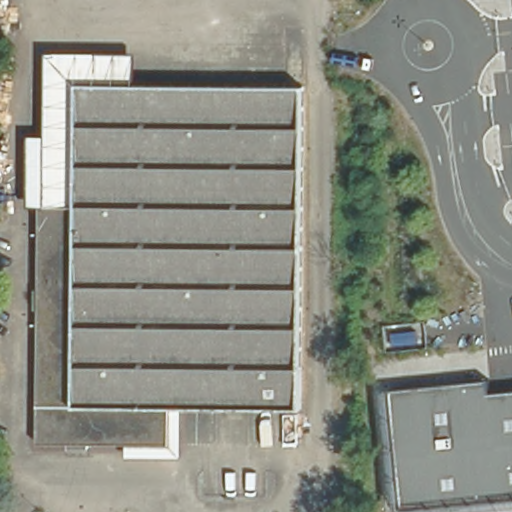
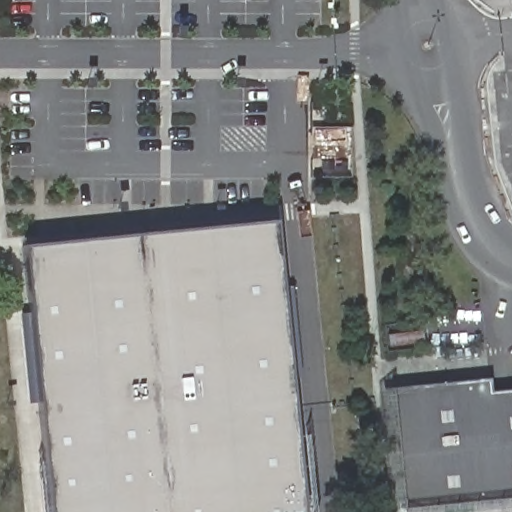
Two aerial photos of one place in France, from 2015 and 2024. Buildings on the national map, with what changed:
demolished [(69,215),(71,92),(132,92),(259,92),(299,92),(295,417),(162,417),(162,454),(34,452),(35,215),(41,215),(69,215)]
new [(48,512),(37,403),(28,404),(19,314),(28,313),(22,247),(276,222),(304,512),(48,512)]
unchanged [(406,512),(405,510),(393,511),(381,390),(488,380),(492,395),(512,392),(512,510),(490,512),(406,512)]

